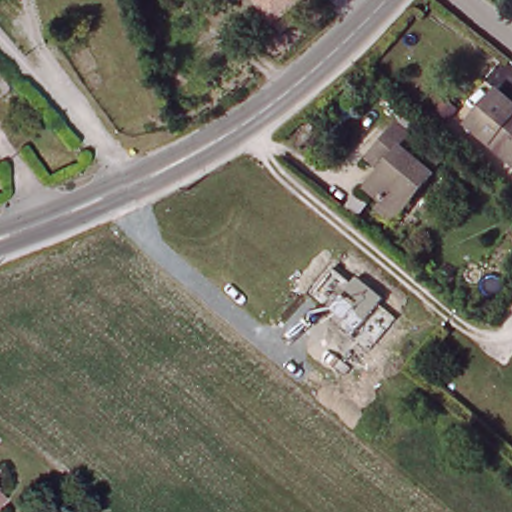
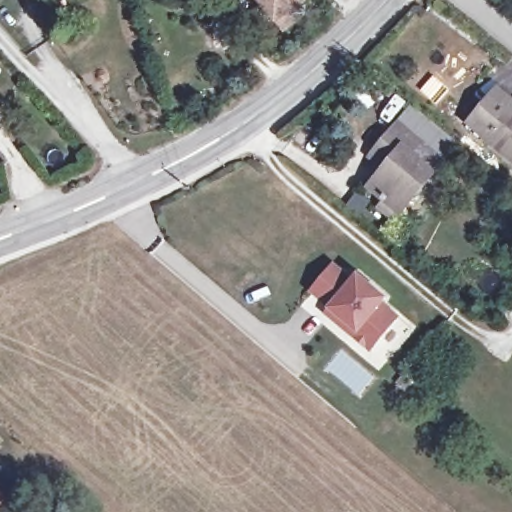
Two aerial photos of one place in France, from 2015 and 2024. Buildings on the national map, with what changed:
unchanged [(293,10),(300,18),(285,30),(263,0),(306,0),(293,10)]
unchanged [(499,88),(512,100),(512,159),(470,123),(499,88)]
unchanged [(462,108),(452,121),(439,109),(449,96),(462,108)]
unchanged [(386,211),(391,204),(377,192),(397,168),(383,156),(406,129),(427,148),(418,159),(441,178),(407,218),(401,226),(386,211)]
new [(327,303),(315,292),(335,267),(355,283),(360,276),(403,312),(372,350),(355,336),(329,314),(334,309),(327,303)]
unchanged [(6,499),(0,506),(0,495),(6,499)]

